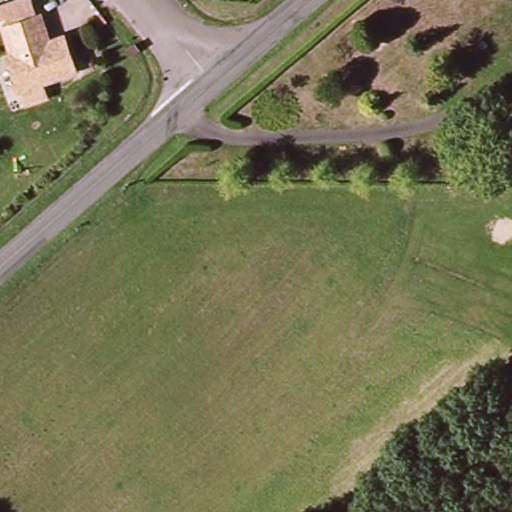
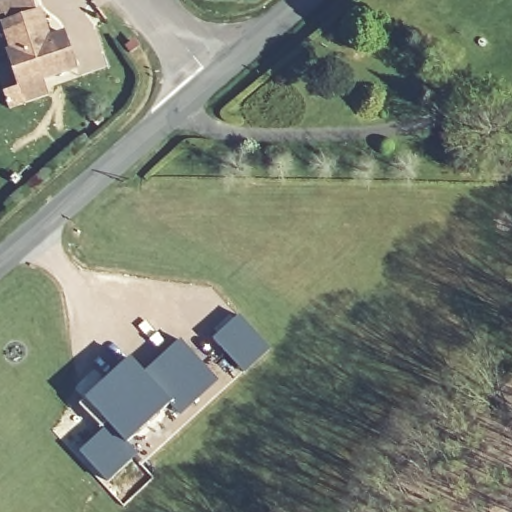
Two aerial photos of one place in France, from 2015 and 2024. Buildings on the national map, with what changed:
unchanged [(37,0),(39,9),(3,20),(0,21),(0,0),(37,0)]
unchanged [(25,98),(20,84),(18,85),(7,49),(11,48),(3,20),(39,9),(44,25),(44,28),(43,30),(41,32),(38,34),(40,40),(64,33),(74,67),(39,78),(44,92),(25,98)]
new [(213,340),(239,315),(270,350),(245,373),(213,340)]
new [(216,380),(180,415),(169,404),(126,443),(136,453),(107,481),(80,452),(109,425),(85,399),(129,360),(142,375),(180,341),(216,380)]

